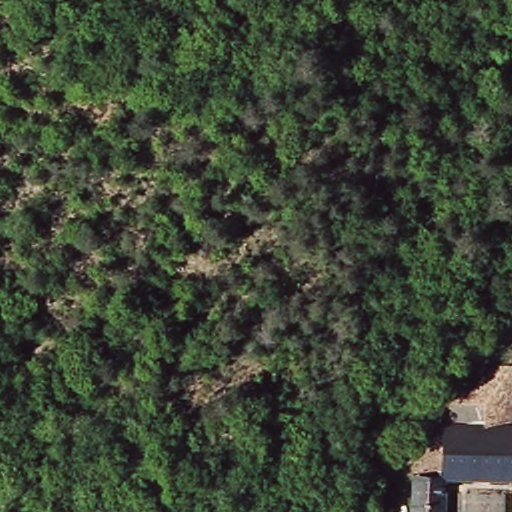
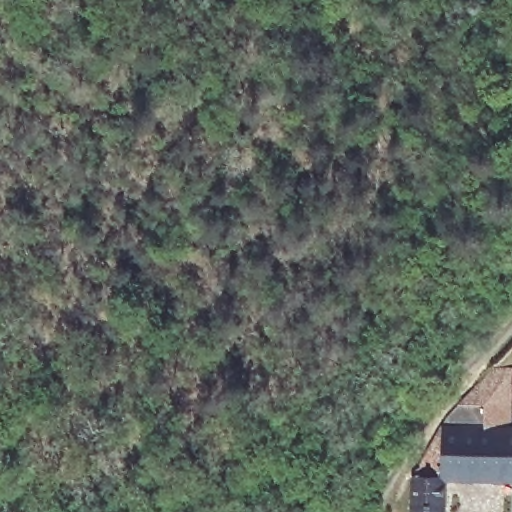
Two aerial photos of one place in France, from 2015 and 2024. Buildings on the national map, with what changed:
unchanged [(446,512),(416,512),(419,462),(457,413),(503,360),(512,362),(512,477),(449,475),(446,512)]

